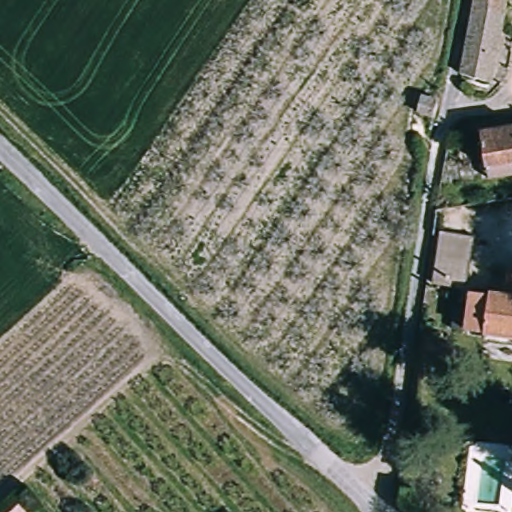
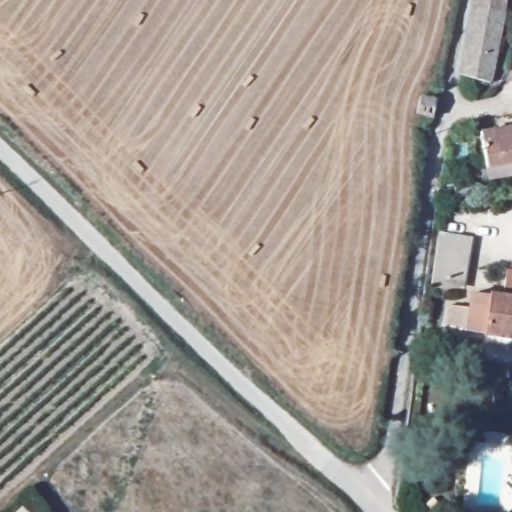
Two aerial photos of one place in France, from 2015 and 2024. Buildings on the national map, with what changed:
unchanged [(500,17),(487,81),(458,76),(469,21),(472,0),(502,0),(500,17)]
unchanged [(430,115),(413,112),(417,94),(433,96),(430,115)]
unchanged [(482,168),(477,129),(512,127),(512,164),(482,168)]
unchanged [(465,237),(451,280),(425,271),(439,229),(465,237)]
unchanged [(512,294),(512,335),(490,333),(495,293),(512,294)]

